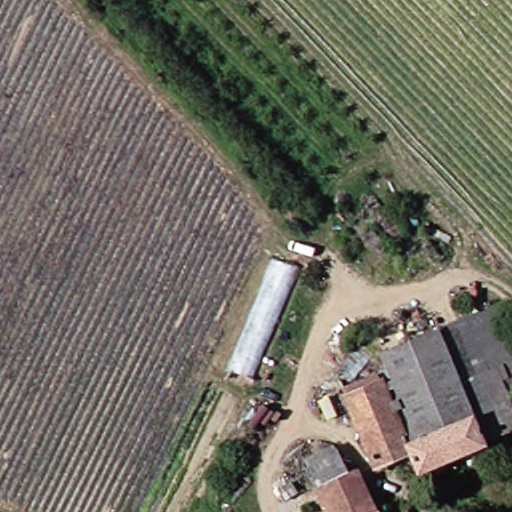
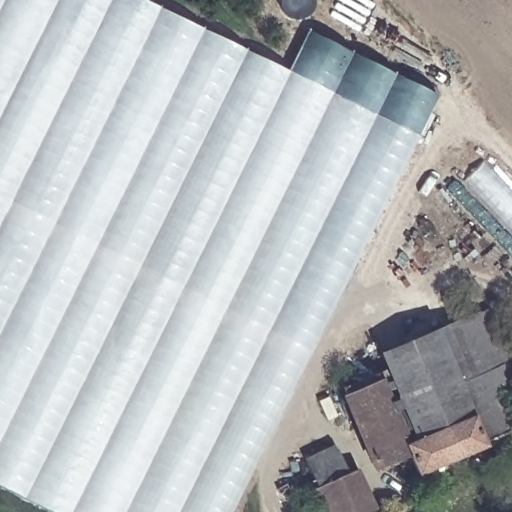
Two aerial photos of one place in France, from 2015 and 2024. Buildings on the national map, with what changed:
new [(145,0),(289,72),(308,32),(436,96),(231,512),(51,512),(0,487),(0,0),(145,0)]
new [(483,162),(512,194),(512,233),(463,181),(483,162)]
demolished [(279,252),(309,258),(257,376),(235,370),(279,252)]
unchanged [(325,402),(349,388),(387,372),(381,356),(443,328),(504,305),(512,324),(512,363),(510,364),(512,370),(512,378),(507,380),(512,390),(512,435),(491,446),(427,477),(415,455),(378,470),(355,412),(336,422),(325,402)]
unchanged [(313,462),(342,450),(354,475),(362,472),(378,512),(333,512),(313,462)]
unchanged [(283,487),(293,481),(302,490),(293,499),(283,487)]

